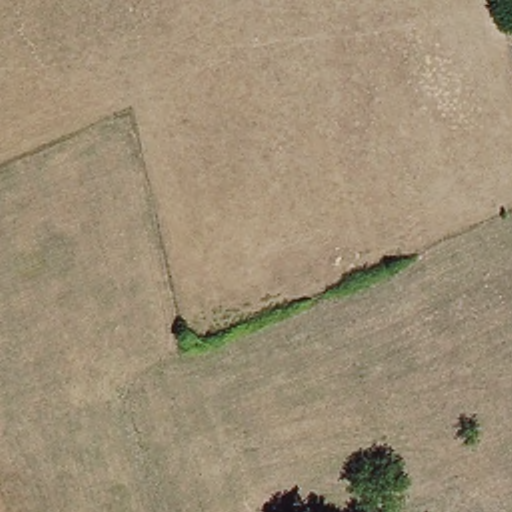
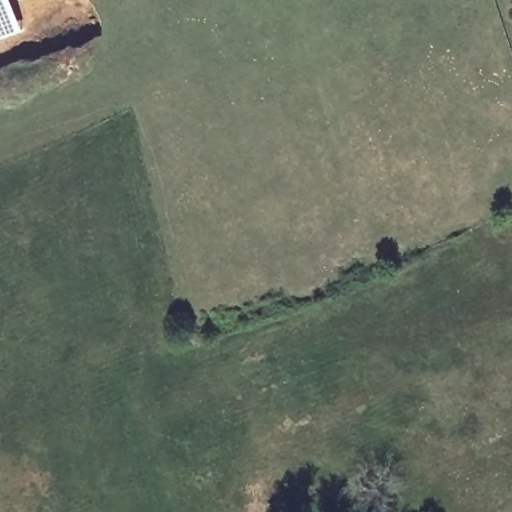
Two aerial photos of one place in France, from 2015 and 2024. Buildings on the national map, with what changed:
new [(0,40),(0,0),(8,0),(20,34),(0,40)]

